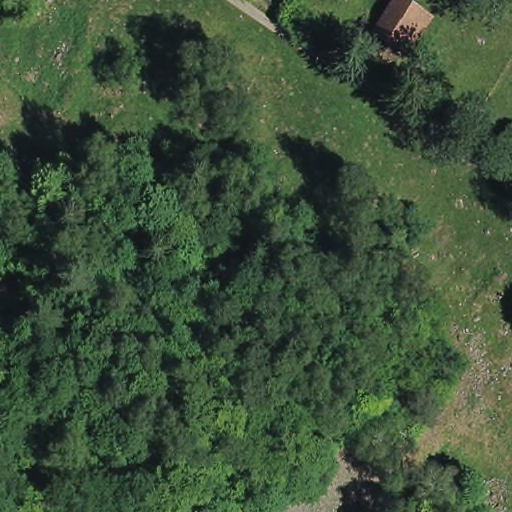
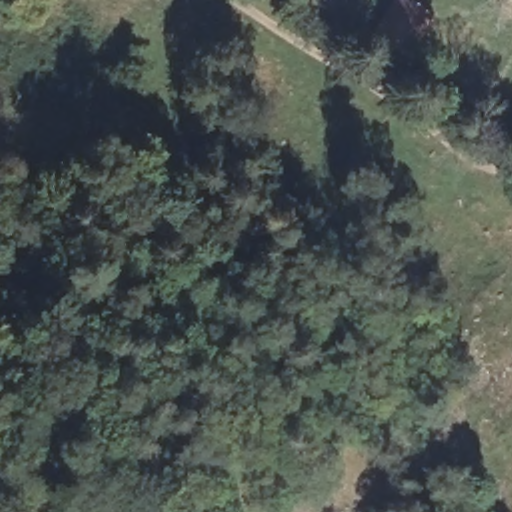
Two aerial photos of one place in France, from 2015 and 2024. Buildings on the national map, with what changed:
unchanged [(369,36),(357,29),(369,9),(381,15),(390,0),(432,0),(410,36),(399,56),(367,39),(369,36)]

